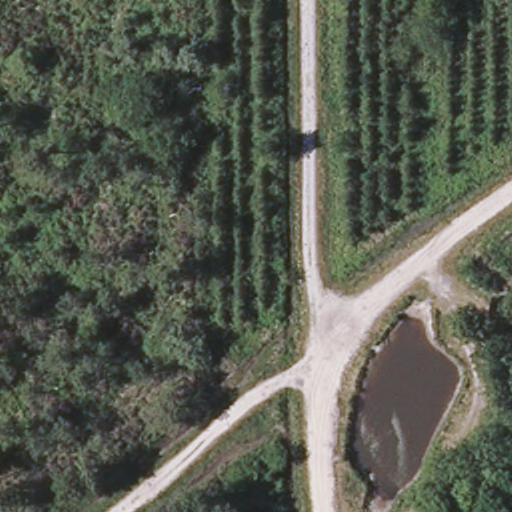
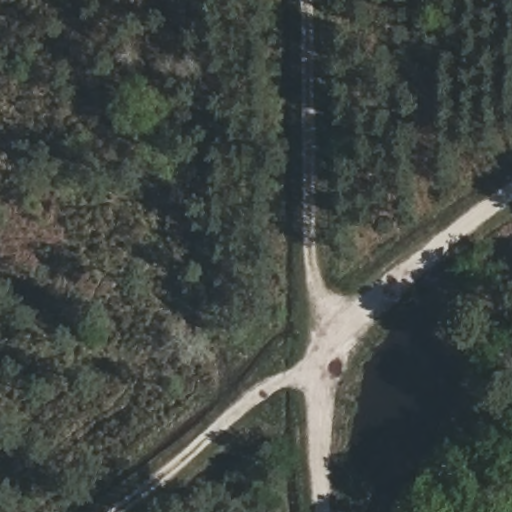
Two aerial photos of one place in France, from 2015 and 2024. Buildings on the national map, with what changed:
[]

